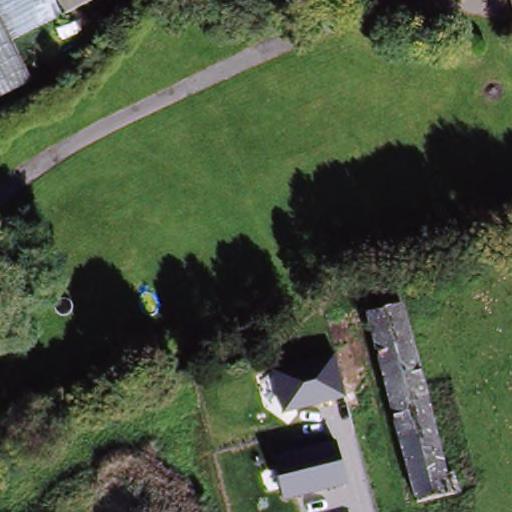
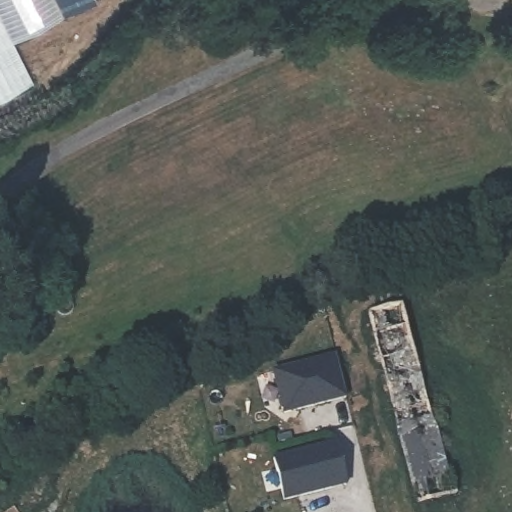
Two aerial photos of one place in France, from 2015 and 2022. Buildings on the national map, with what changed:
unchanged [(16,41),(40,83),(0,104),(0,0),(99,0),(16,41)]
unchanged [(450,471),(455,494),(410,505),(367,312),(375,310),(368,286),(393,277),(400,304),(439,474),(450,471)]
unchanged [(270,370),(333,353),(346,398),(283,414),(270,370)]
unchanged [(272,456),(337,441),(348,486),(282,501),(272,456)]

